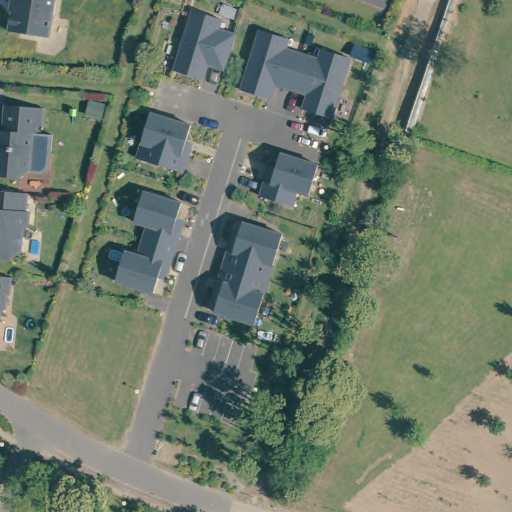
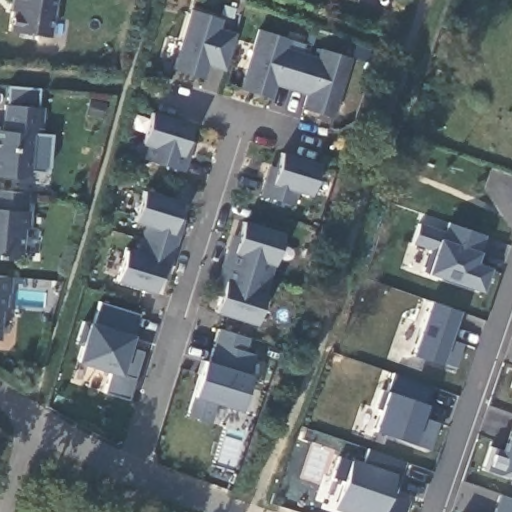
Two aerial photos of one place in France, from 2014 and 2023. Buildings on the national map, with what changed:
unchanged [(8,31),(12,3),(11,2),(11,0),(57,0),(52,37),(8,31)]
unchanged [(200,80),(170,70),(189,11),(218,20),(215,29),(231,34),(222,64),(206,59),(200,80)]
unchanged [(328,119),(299,109),(305,89),(273,79),(266,99),(237,90),(255,31),(284,41),(281,50),(314,60),(317,51),(346,60),(328,119)]
unchanged [(1,128),(4,103),(41,106),(39,134),(30,132),(27,169),(19,175),(0,173),(0,128),(1,128)]
unchanged [(143,161),(148,147),(136,144),(146,113),(163,119),(185,125),(175,155),(182,157),(178,172),(143,161)]
unchanged [(253,196),(258,181),(265,183),(274,153),(287,157),(313,166),(304,196),(292,192),(287,207),(257,197),(253,196)]
unchanged [(10,188),(26,190),(25,208),(28,209),(27,224),(22,228),(20,249),(11,257),(0,255),(0,187),(10,188)]
unchanged [(109,281),(119,250),(125,252),(134,223),(128,221),(137,191),(177,203),(167,233),(174,235),(164,265),(158,263),(149,293),(109,281)]
unchanged [(210,312),(219,283),(213,281),(223,250),(229,252),(238,222),(278,235),(268,265),(262,263),(253,292),(259,294),(249,324),(210,312)]
new [(431,250),(412,243),(419,224),(445,232),(449,222),(485,235),(479,254),(475,253),(473,263),(489,269),(482,292),(423,272),(431,250)]
unchanged [(5,295),(2,295),(1,310),(0,310),(0,277),(7,278),(5,295)]
new [(450,339),(463,343),(456,368),(412,354),(429,301),(458,310),(450,339)]
new [(138,314),(128,348),(140,352),(126,398),(103,391),(109,372),(76,362),(88,322),(94,323),(99,303),(138,314)]
new [(187,414),(192,397),(203,360),(210,362),(219,328),(248,338),(244,353),(254,357),(249,374),(239,409),(217,403),(210,422),(187,414)]
new [(512,363),(512,385),(505,383),(511,363),(512,363)]
new [(380,410),(376,408),(382,389),(387,391),(393,373),(432,386),(422,417),(439,422),(430,449),(373,429),(380,410)]
new [(498,448),(511,411),(512,411),(512,467),(509,467),(506,476),(476,466),(484,443),(498,448)]
new [(340,456),(400,476),(396,490),(392,489),(390,494),(410,500),(405,512),(372,512),(362,510),(361,512),(355,512),(336,506),(344,480),(333,476),(340,456)]
new [(512,512),(487,512),(494,490),(512,496),(512,512)]
new [(456,509),(465,512),(455,512),(456,509)]

